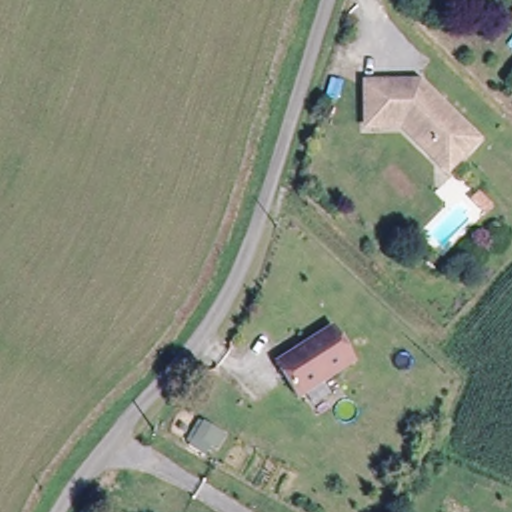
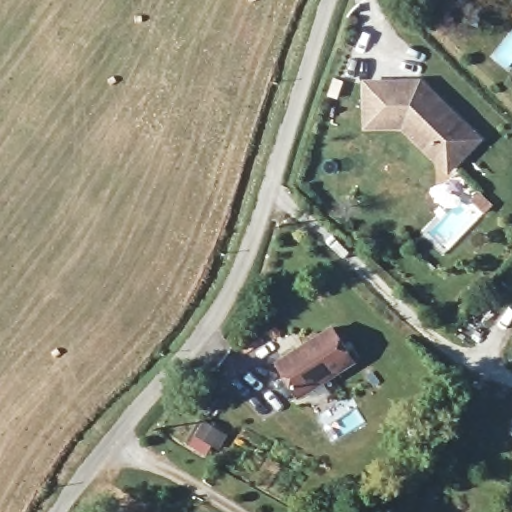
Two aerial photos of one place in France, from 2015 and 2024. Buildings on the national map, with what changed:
unchanged [(425,84),(480,143),(450,172),(406,128),(370,128),(370,112),(370,85),(425,84)]
unchanged [(500,193),(495,200),(483,188),(489,183),(500,193)]
unchanged [(354,360),(300,395),(278,361),(333,327),(354,360)]

